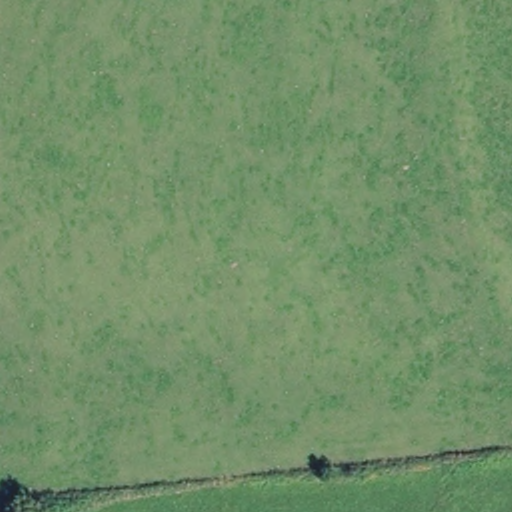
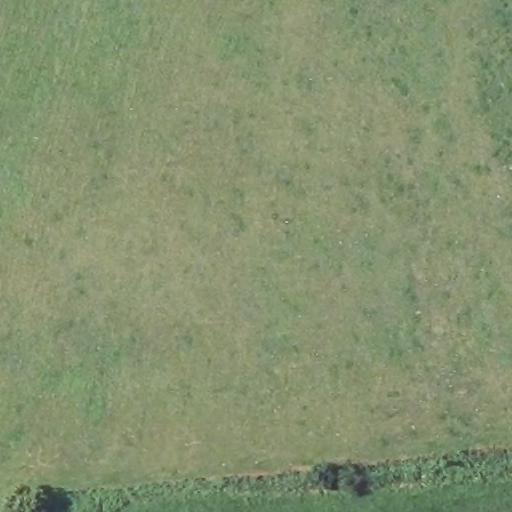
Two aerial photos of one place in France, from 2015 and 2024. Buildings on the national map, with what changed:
[]

